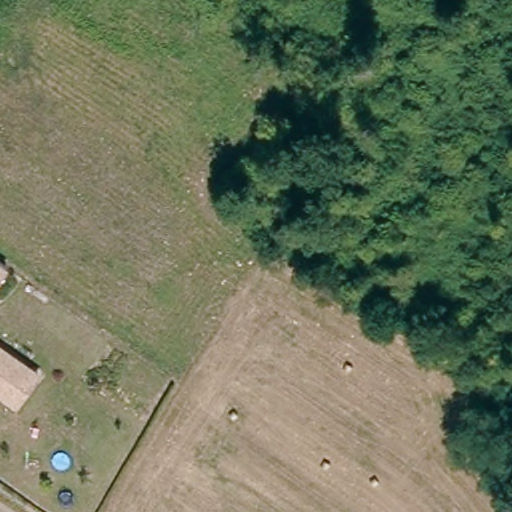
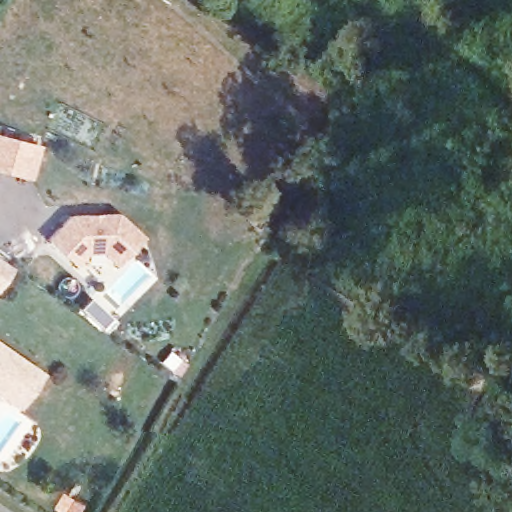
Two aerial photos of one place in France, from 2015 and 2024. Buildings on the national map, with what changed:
new [(29,177),(0,170),(0,134),(38,144),(29,177)]
new [(66,214),(115,211),(141,235),(115,265),(100,252),(85,252),(75,264),(44,239),(66,214)]
unchanged [(0,281),(0,259),(10,266),(0,281)]
unchanged [(19,397),(0,386),(0,340),(39,365),(19,397)]

